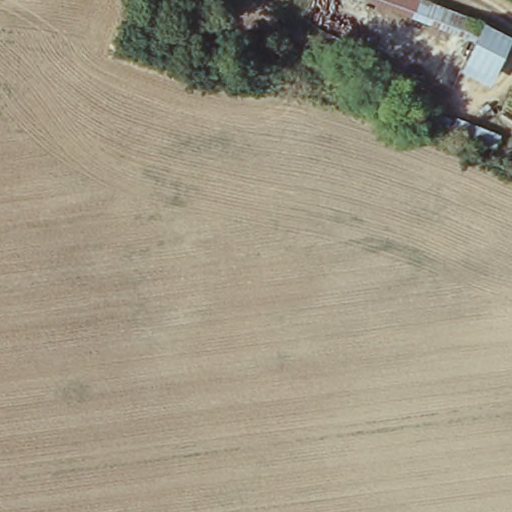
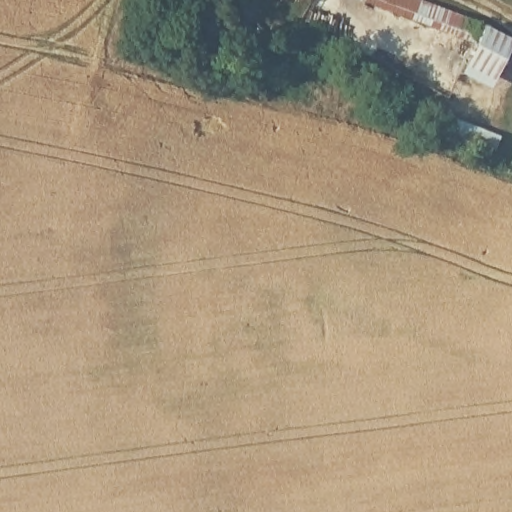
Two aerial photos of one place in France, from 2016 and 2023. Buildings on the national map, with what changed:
unchanged [(487,25),(512,37),(512,40),(492,86),(462,77),(480,47),(467,40),(369,6),(347,0),(428,0),(464,14),(487,25)]
unchanged [(456,116),(500,135),(492,149),(449,130),(456,116)]

